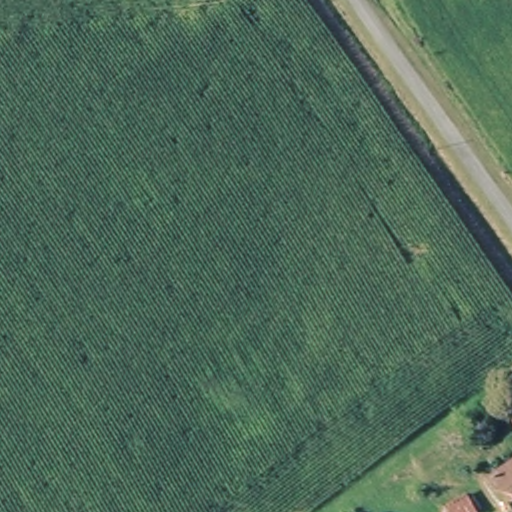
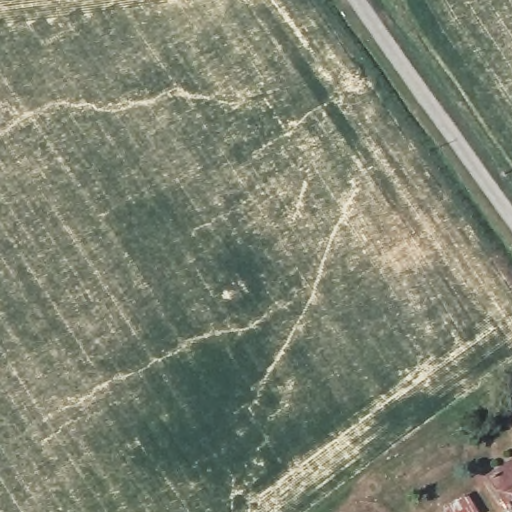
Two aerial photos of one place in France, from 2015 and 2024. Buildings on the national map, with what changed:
unchanged [(494,472),(512,462),(512,498),(494,472)]
unchanged [(462,499),(470,512),(443,512),(443,511),(462,499)]

